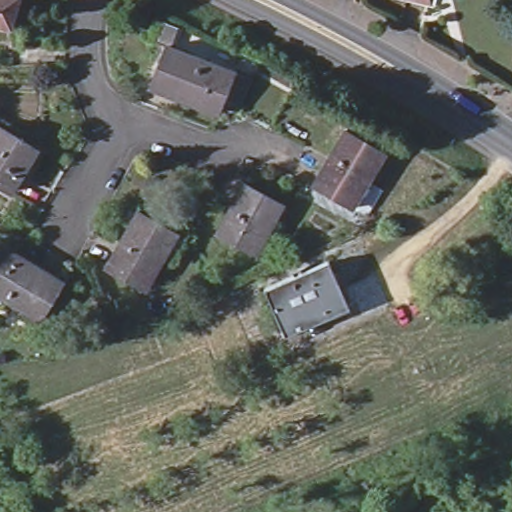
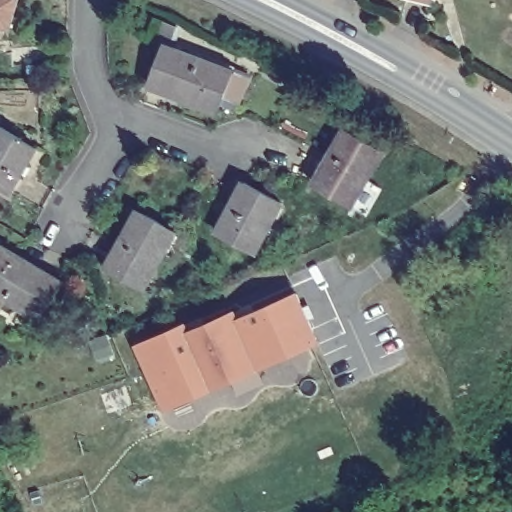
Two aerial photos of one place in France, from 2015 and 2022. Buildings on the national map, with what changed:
unchanged [(0,25),(0,0),(18,0),(10,27),(0,25)]
unchanged [(156,30),(159,31),(164,17),(178,23),(173,36),(163,33),(161,38),(154,36),(156,30)]
unchanged [(241,101),(222,94),(217,106),(150,80),(166,39),(189,48),(190,46),(194,48),(193,50),(234,66),(252,73),(241,101)]
unchanged [(0,126),(37,148),(10,192),(0,186),(0,126)]
unchanged [(384,151),(367,181),(377,186),(364,206),(352,206),(322,189),(321,191),(317,189),(317,186),(313,184),(345,129),(384,151)]
unchanged [(282,203),(256,253),(217,232),(243,182),(282,203)]
unchanged [(177,232),(145,288),(107,267),(138,211),(177,232)]
unchanged [(40,319),(0,296),(0,244),(62,282),(40,319)]
demolished [(328,260),(346,302),(282,330),(264,288),(328,260)]
new [(322,340),(163,412),(134,344),(188,317),(191,327),(237,308),(239,315),(299,288),(322,340)]

